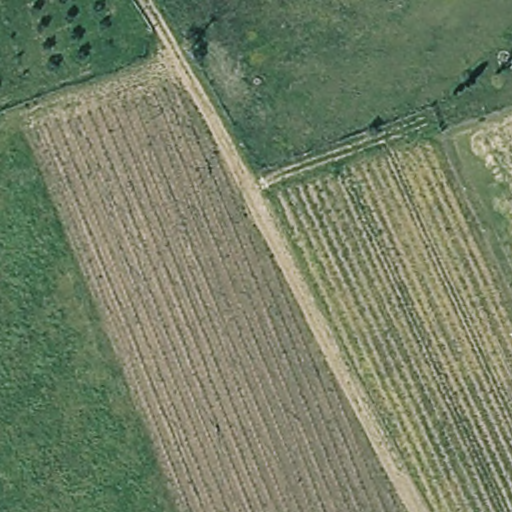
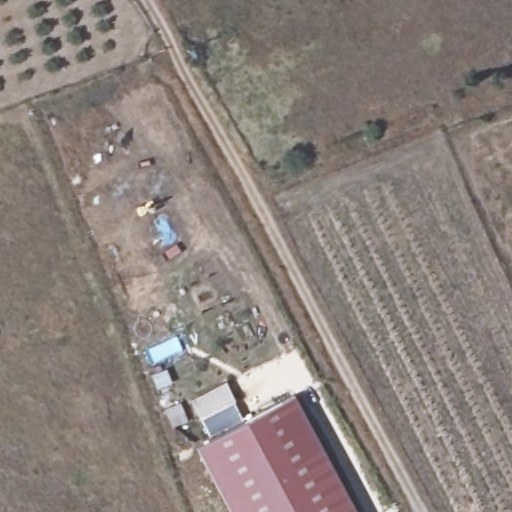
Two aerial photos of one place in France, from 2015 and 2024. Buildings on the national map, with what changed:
new [(293,404),(348,512),(224,512),(195,455),(293,404)]

